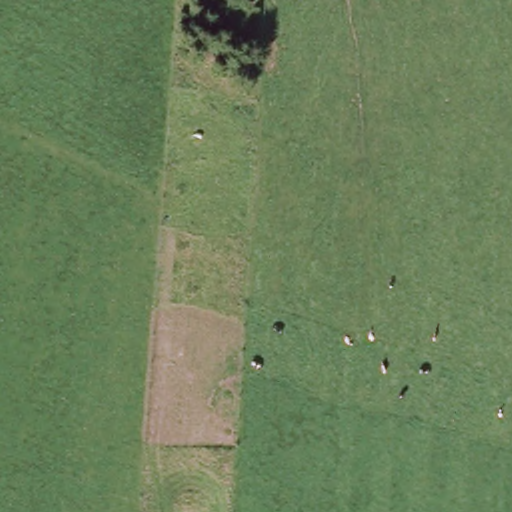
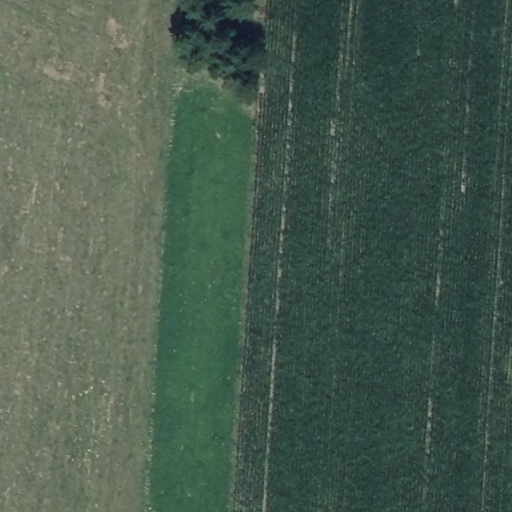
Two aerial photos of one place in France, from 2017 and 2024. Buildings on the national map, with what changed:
[]

